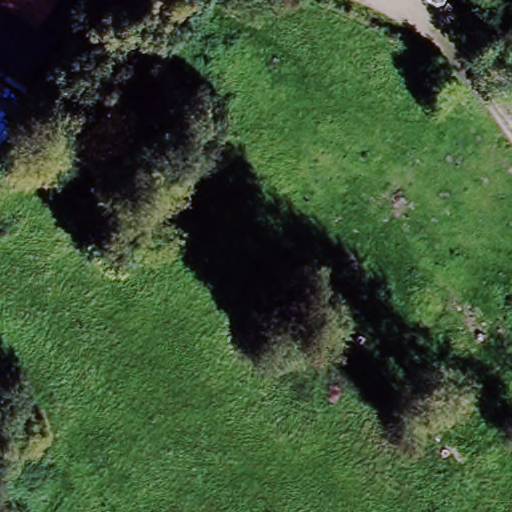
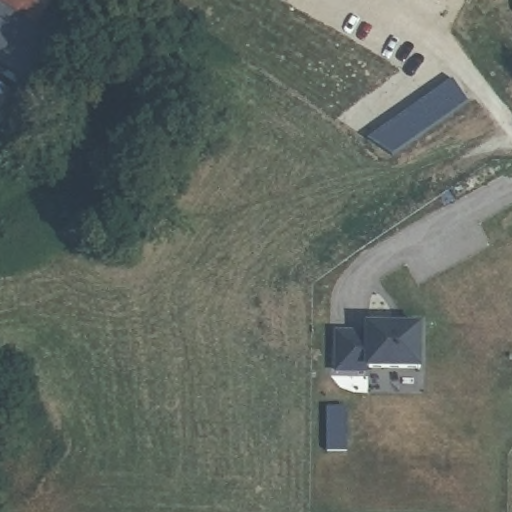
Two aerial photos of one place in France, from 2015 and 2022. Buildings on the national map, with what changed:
unchanged [(75,53),(36,29),(0,7),(0,0),(110,0),(75,53)]
unchanged [(436,1),(434,0),(439,0),(436,1)]
unchanged [(36,29),(6,77),(0,73),(0,7),(36,29)]
new [(470,107),(396,159),(367,140),(452,82),(470,107)]
new [(335,332),(365,333),(365,325),(417,326),(417,368),(365,367),(365,371),(334,371),(335,332)]

